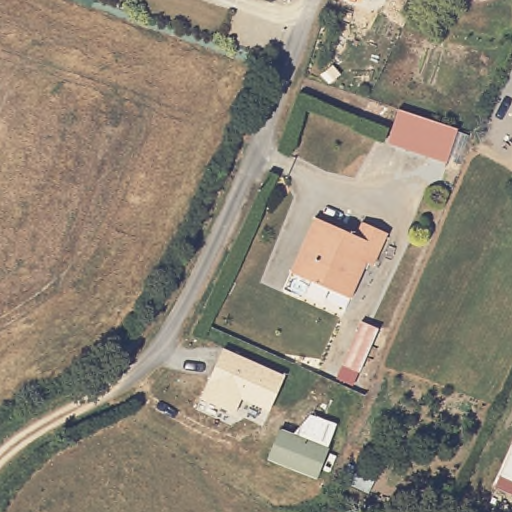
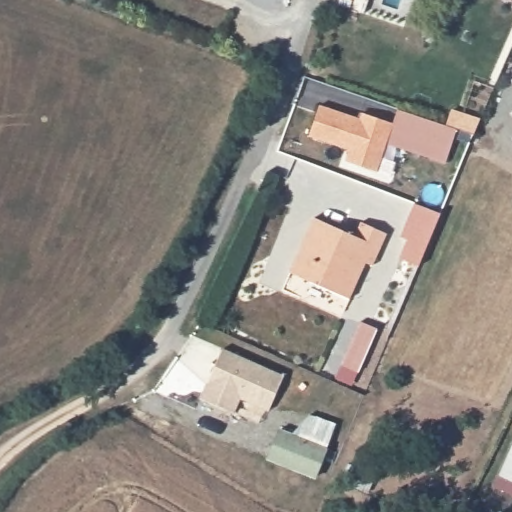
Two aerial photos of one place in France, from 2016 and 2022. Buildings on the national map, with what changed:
new [(319,104),(358,116),(361,110),(394,121),(387,142),(378,172),(344,160),(348,149),(309,136),(319,104)]
unchanged [(398,108),(457,128),(448,161),(387,142),(398,108)]
new [(408,238),(400,235),(416,202),(442,212),(419,266),(400,257),(408,238)]
unchanged [(355,234),(361,222),(387,233),(374,264),(366,262),(350,298),(289,270),(299,248),(303,250),(309,234),(306,233),(314,216),(355,234)]
unchanged [(361,320),(378,328),(352,385),(335,378),(361,320)]
unchanged [(284,374),(269,409),(241,399),(235,412),(200,399),(224,348),(284,374)]
unchanged [(326,447),(315,476),(268,458),(279,429),(326,447)]
unchanged [(494,485),(512,447),(512,493),(494,485)]

